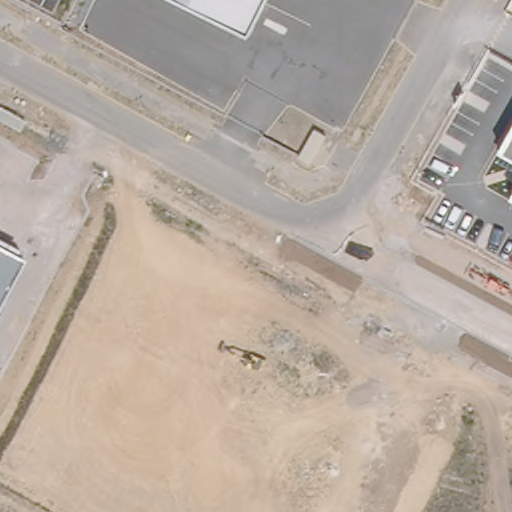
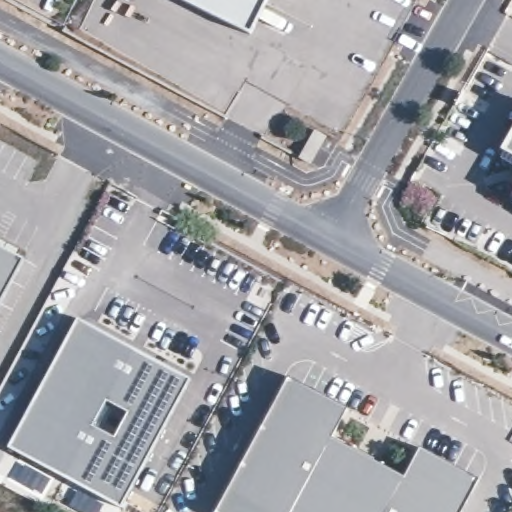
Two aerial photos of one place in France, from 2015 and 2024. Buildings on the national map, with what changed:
unchanged [(181,0),(266,0),(250,33),(181,0)]
unchanged [(500,149),(512,128),(512,156),(500,149)]
unchanged [(0,238),(21,249),(17,255),(23,259),(0,302),(0,238)]
new [(78,319),(191,380),(121,509),(8,448),(78,319)]
new [(348,407),(332,437),(404,476),(420,448),(479,479),(461,512),(216,512),(288,376),(348,407)]

